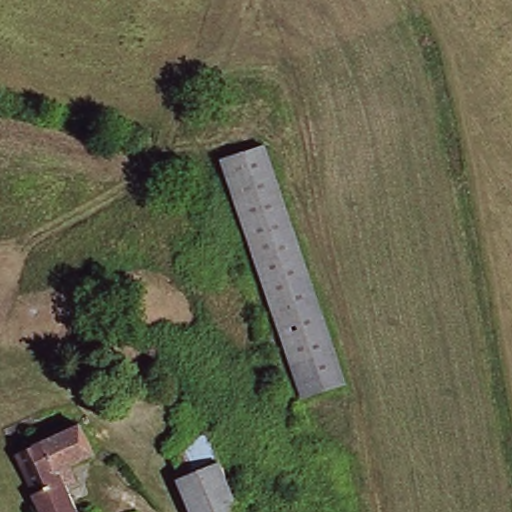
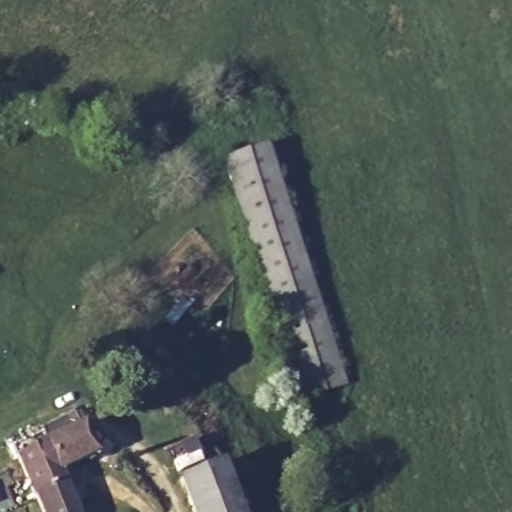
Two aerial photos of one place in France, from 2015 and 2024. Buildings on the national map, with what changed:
unchanged [(301,397),(226,163),(268,150),(341,369),(345,383),(301,397)]
unchanged [(38,512),(16,448),(85,426),(94,455),(67,463),(56,467),(62,484),(71,512),(38,512)]
unchanged [(185,481),(175,453),(207,440),(238,512),(191,512),(179,482),(185,481)]

